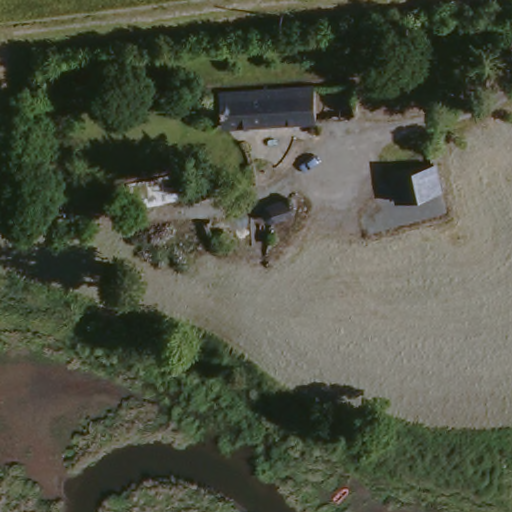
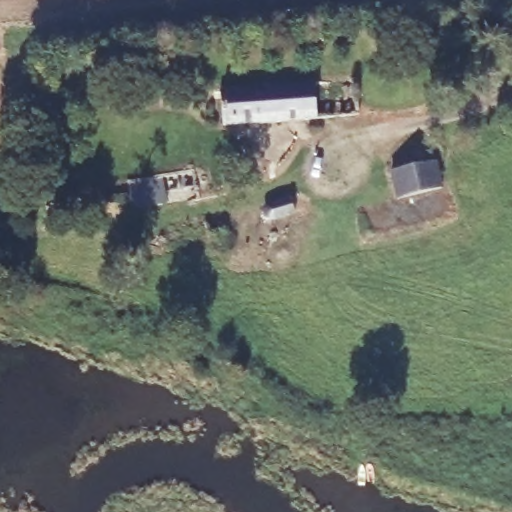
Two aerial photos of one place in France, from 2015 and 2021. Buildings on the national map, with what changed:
unchanged [(338,119),(201,129),(198,93),(335,82),(338,119)]
unchanged [(436,205),(418,208),(393,212),(382,163),(427,155),(436,205)]
unchanged [(198,192),(144,206),(136,174),(189,160),(198,192)]
unchanged [(300,213),(273,226),(268,218),(272,207),(289,200),(300,213)]
unchanged [(223,227),(229,228),(228,242),(221,251),(208,247),(208,235),(204,217),(221,213),(223,227)]

